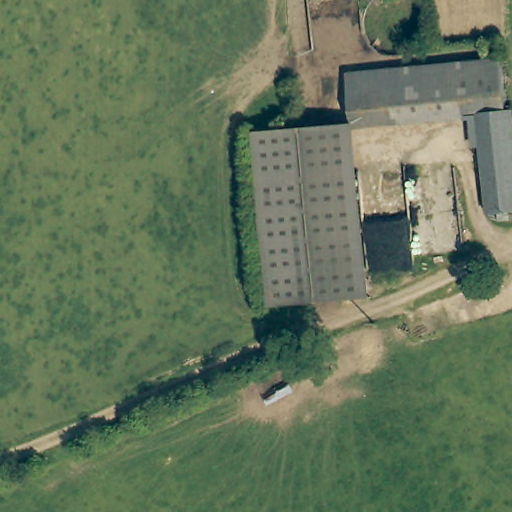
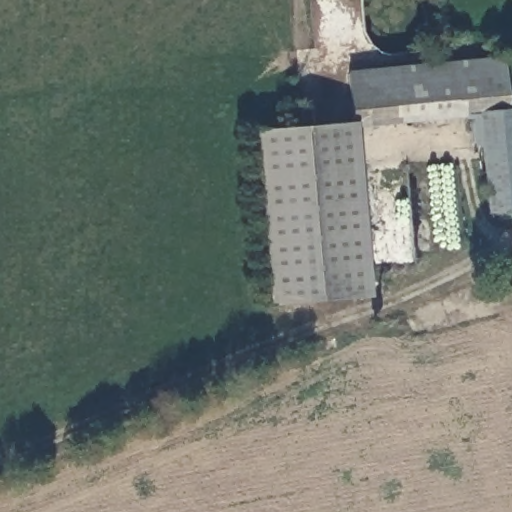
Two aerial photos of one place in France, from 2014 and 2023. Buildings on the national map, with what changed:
unchanged [(344,124),(342,73),(496,64),(499,112),(470,115),(348,123),(344,124)]
unchanged [(499,112),(503,112),(512,185),(512,210),(483,214),(474,149),(471,119),(470,115),(499,112)]
unchanged [(369,295),(369,297),(270,309),(270,307),(247,133),(344,124),(348,123),(369,295)]

